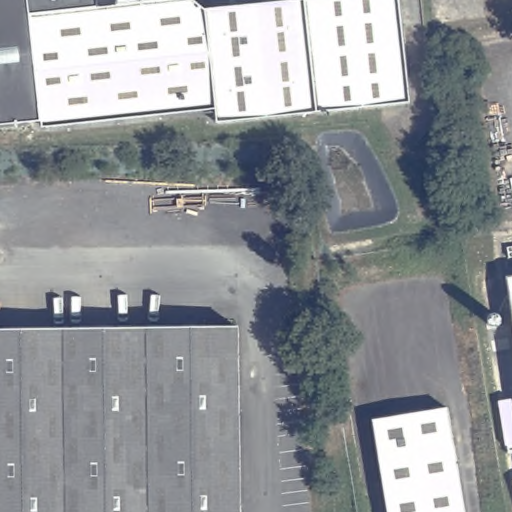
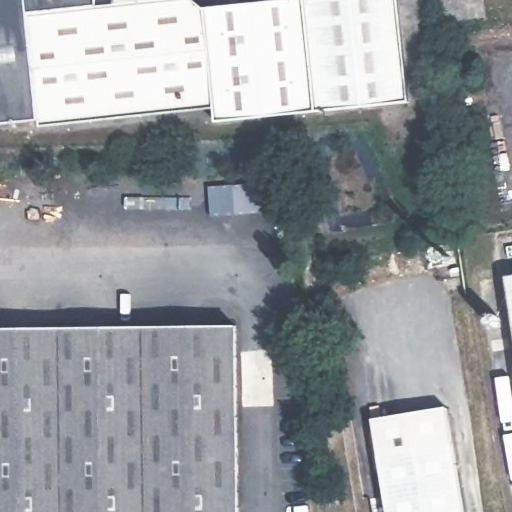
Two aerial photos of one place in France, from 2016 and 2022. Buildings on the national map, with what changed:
unchanged [(149,0),(197,0),(207,7),(244,3),(262,2),(262,0),(401,0),(411,102),(229,120),(218,122),(217,108),(42,125),(42,119),(0,124),(0,0),(100,0),(101,5),(149,0)]
unchanged [(149,0),(115,3),(116,0),(149,0)]
unchanged [(512,275),(512,282),(511,275),(512,275)]
unchanged [(240,324),(241,393),(242,512),(0,512),(0,327),(240,324)]
unchanged [(375,422),(446,410),(463,512),(389,512),(375,422)]

